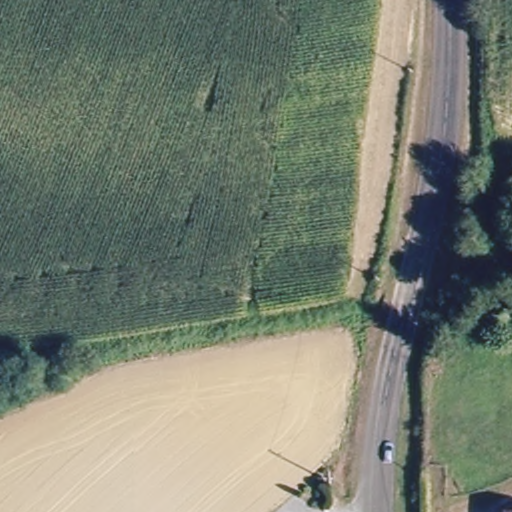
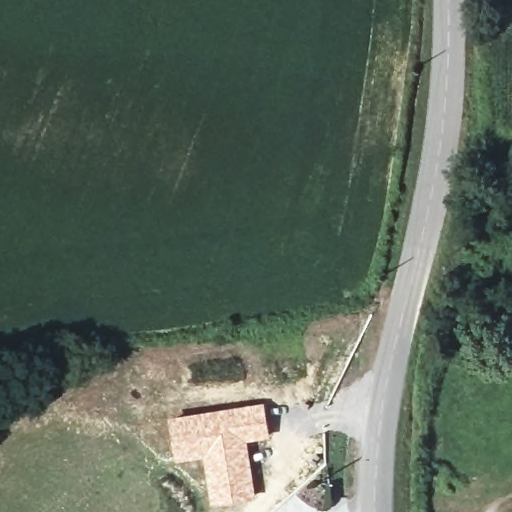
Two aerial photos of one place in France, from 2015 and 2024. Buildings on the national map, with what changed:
new [(265,402),(271,436),(248,441),(256,497),(210,504),(203,457),(175,460),(168,417),(265,402)]

